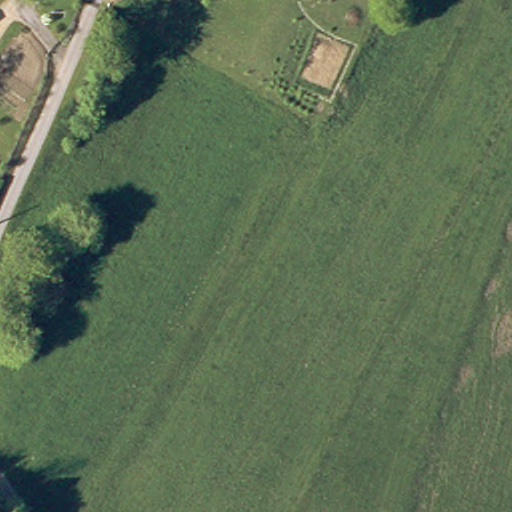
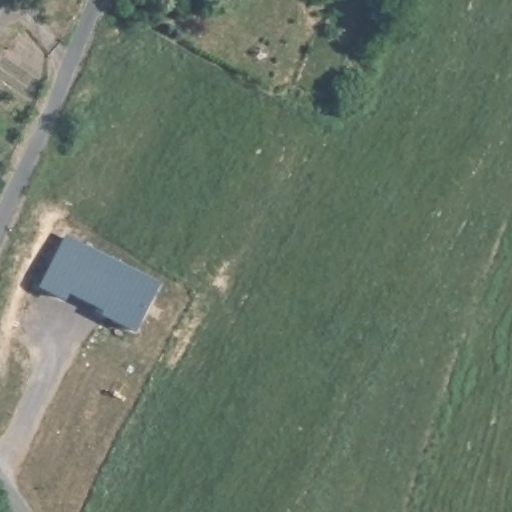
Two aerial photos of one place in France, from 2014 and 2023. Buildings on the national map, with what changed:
new [(160,281),(133,332),(100,316),(103,311),(70,293),(65,301),(38,287),(66,233),(160,281)]

